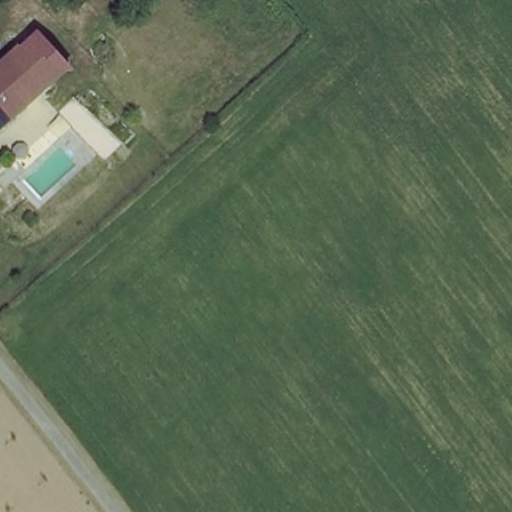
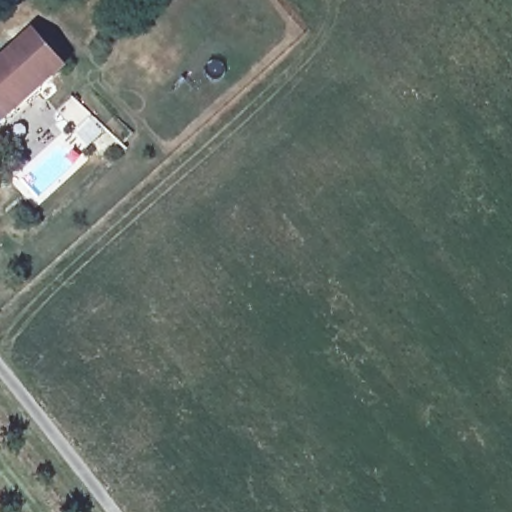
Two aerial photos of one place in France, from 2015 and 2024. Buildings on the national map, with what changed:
unchanged [(36,33),(63,61),(45,78),(35,68),(23,76),(6,57),(36,33)]
unchanged [(0,62),(6,57),(23,76),(35,68),(45,78),(0,118),(0,62)]

